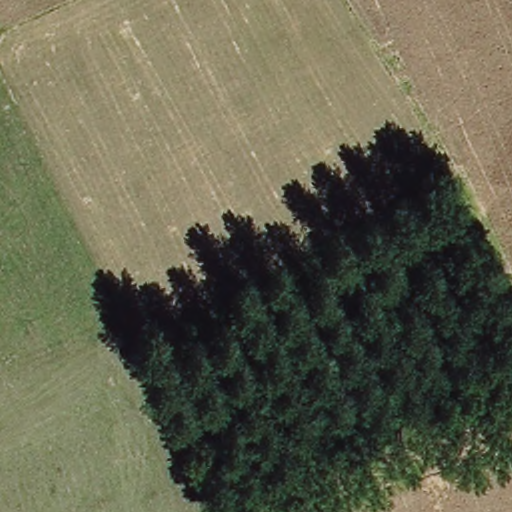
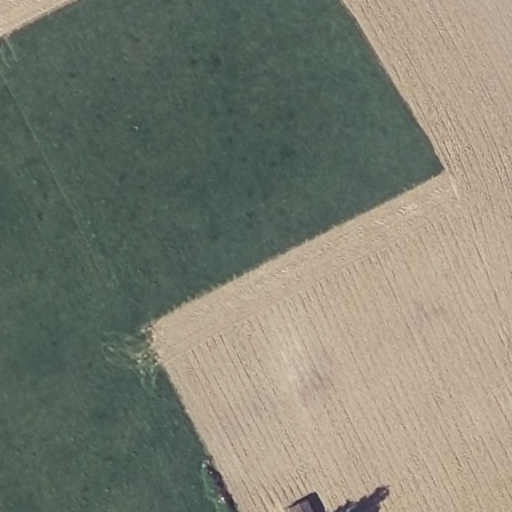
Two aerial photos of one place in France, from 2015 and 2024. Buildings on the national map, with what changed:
unchanged [(308,505),(311,512),(289,512),(289,511),(308,505)]

